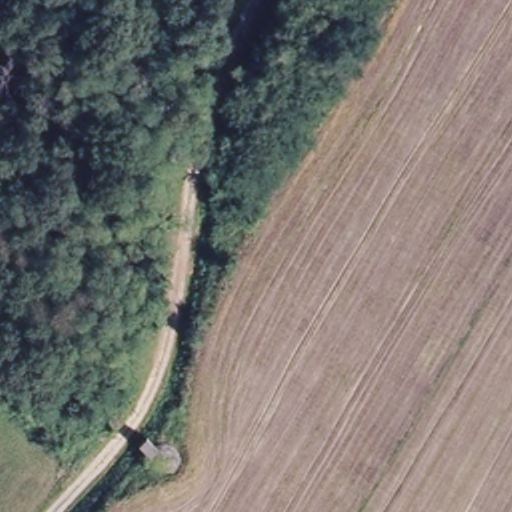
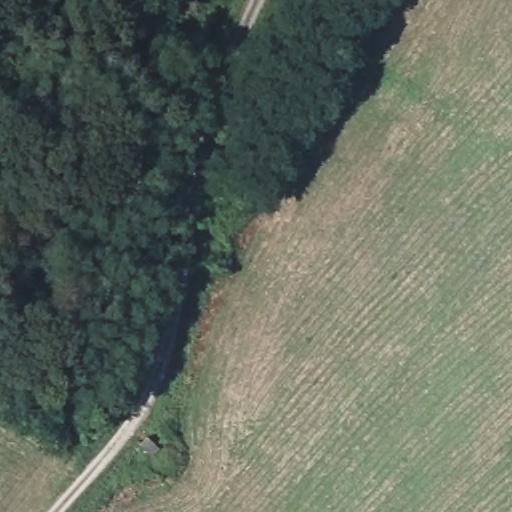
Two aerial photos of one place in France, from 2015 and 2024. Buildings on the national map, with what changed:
[]

